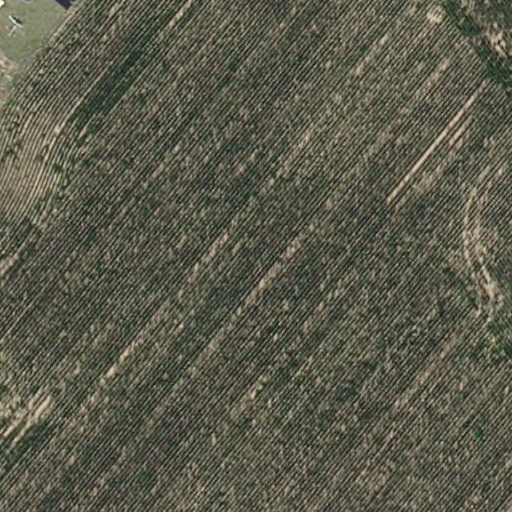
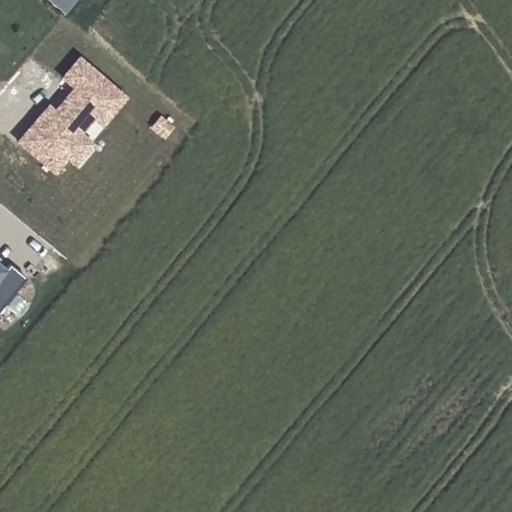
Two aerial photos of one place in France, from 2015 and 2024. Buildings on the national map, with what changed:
new [(56,0),(81,0),(70,12),(56,0)]
new [(77,56),(126,99),(101,126),(92,120),(82,134),(94,145),(74,168),(66,160),(53,176),(14,143),(47,105),(52,110),(70,89),(57,79),(77,56)]
new [(9,267),(25,281),(0,309),(0,267),(6,271),(9,267)]

